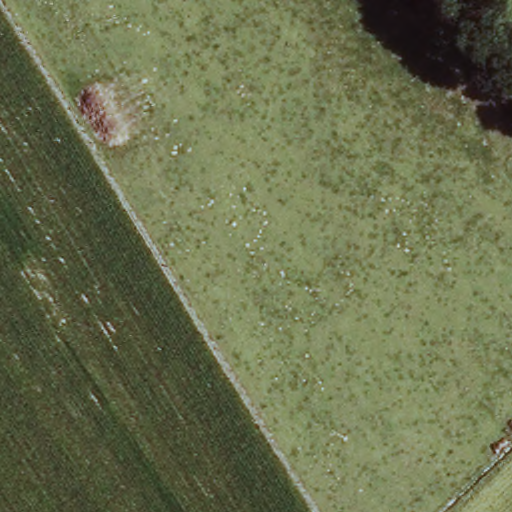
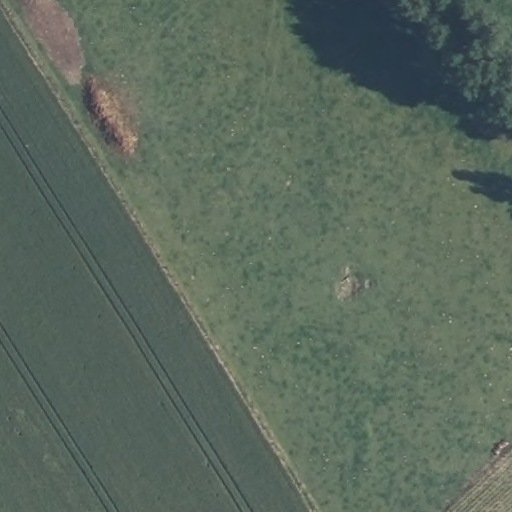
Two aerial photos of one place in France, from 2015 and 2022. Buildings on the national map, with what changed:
[]

